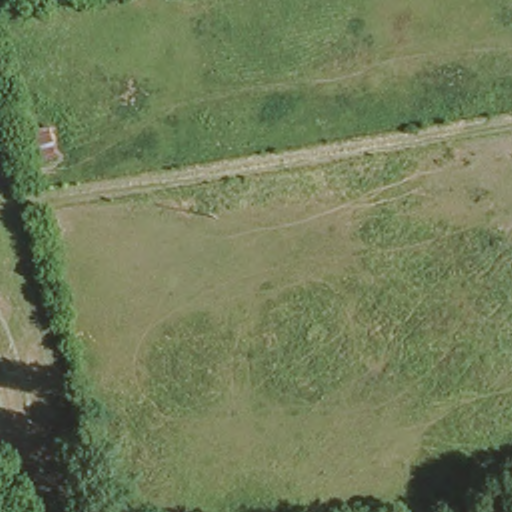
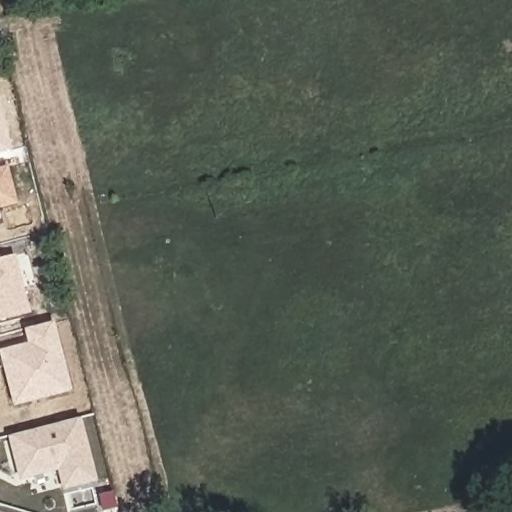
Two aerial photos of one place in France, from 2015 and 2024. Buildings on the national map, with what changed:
new [(0,113),(9,151),(0,153),(0,113)]
new [(0,166),(7,165),(18,204),(0,208),(0,166)]
new [(29,312),(0,320),(0,258),(13,255),(29,312)]
new [(53,321),(71,391),(13,407),(0,355),(0,349),(26,342),(23,328),(53,321)]
new [(80,417),(97,481),(62,490),(57,471),(19,481),(6,436),(80,417)]

